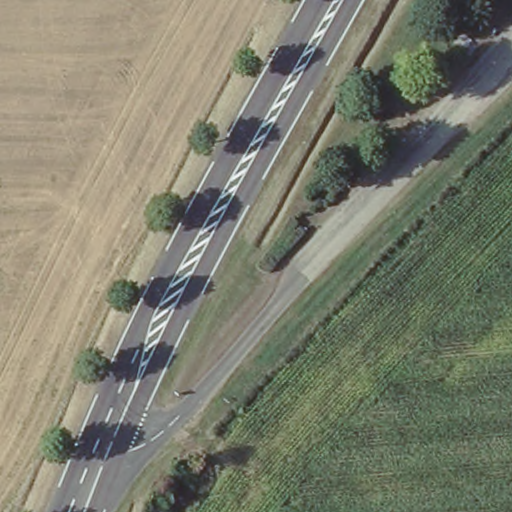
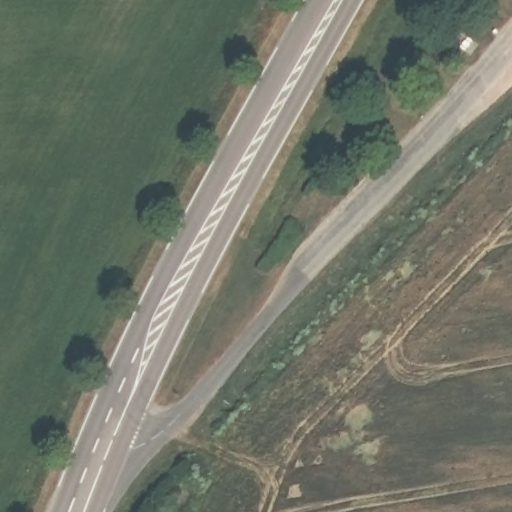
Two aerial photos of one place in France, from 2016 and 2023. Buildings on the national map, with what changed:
[]

